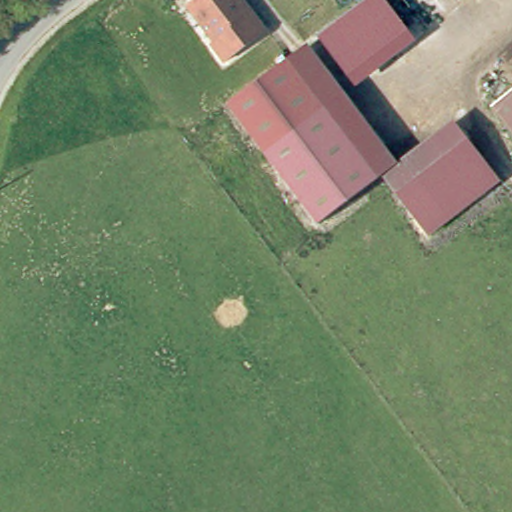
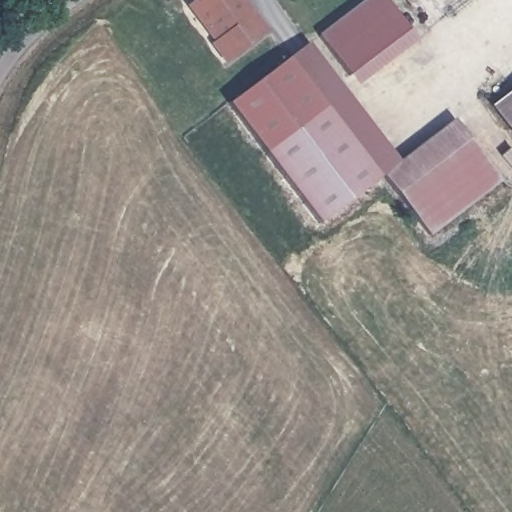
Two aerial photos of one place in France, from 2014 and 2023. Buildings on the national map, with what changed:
unchanged [(203,6),(210,0),(242,0),(243,2),(251,12),(271,38),(231,69),(217,51),(220,49),(208,33),(193,13),(203,6)]
unchanged [(318,35),(364,0),(385,0),(416,38),(356,85),(318,35)]
unchanged [(324,219),(233,100),(289,57),(309,42),(399,161),(384,173),(384,174),(380,176),(324,219)]
unchanged [(499,104),(512,94),(512,121),(499,104)]
unchanged [(503,178),(431,233),(384,174),(384,173),(399,161),(455,118),(503,178)]

